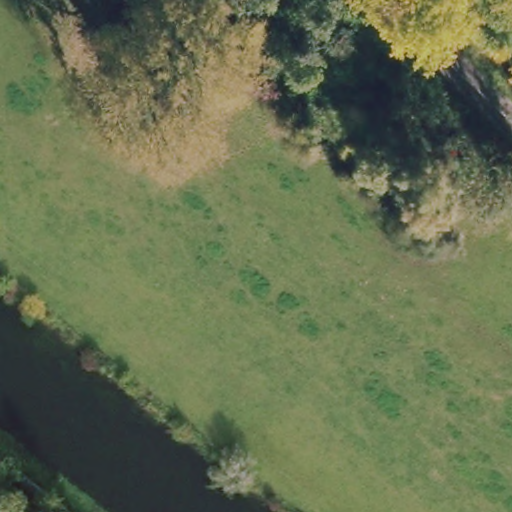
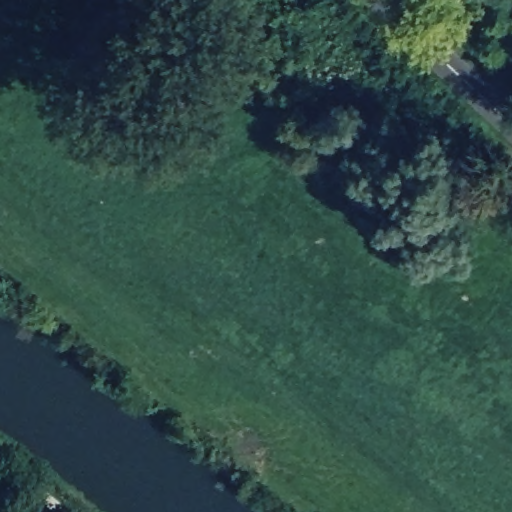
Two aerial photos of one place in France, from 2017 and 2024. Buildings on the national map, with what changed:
[]

